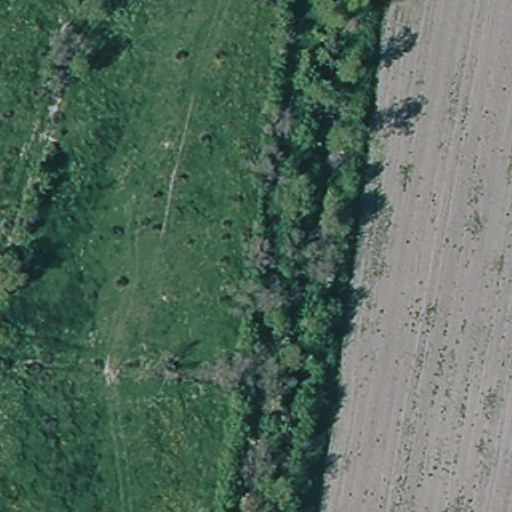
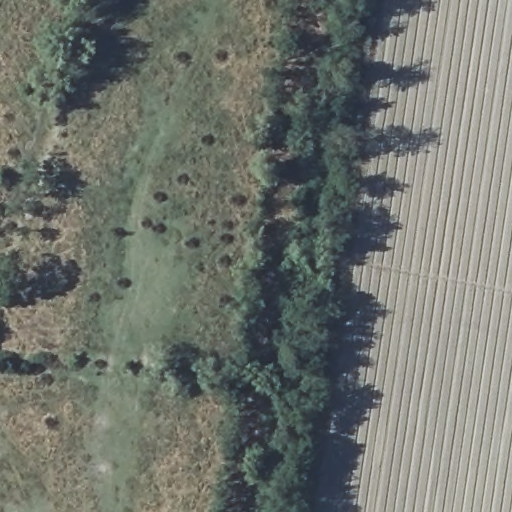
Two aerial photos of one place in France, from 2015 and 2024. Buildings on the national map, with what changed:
[]

